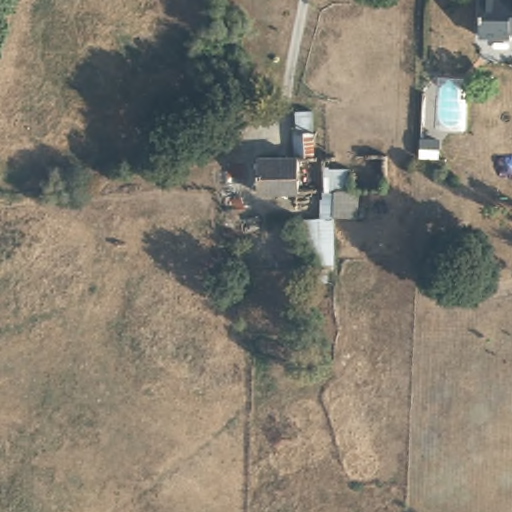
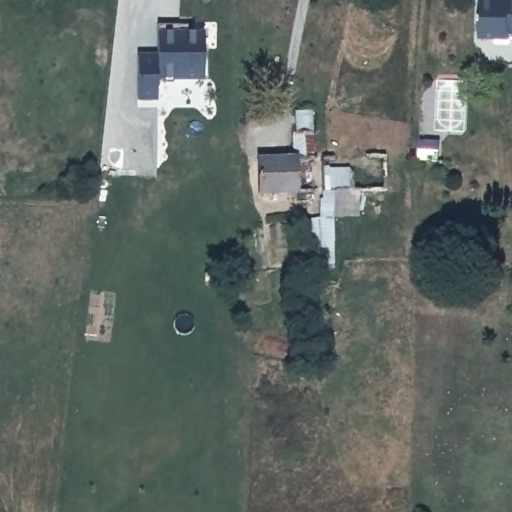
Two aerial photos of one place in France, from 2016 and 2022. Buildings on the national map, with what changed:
unchanged [(482,34),(483,0),(512,0),(512,34),(482,34)]
new [(205,81),(160,81),(160,100),(139,100),(138,53),(158,53),(158,30),(205,30),(205,81)]
unchanged [(258,188),(256,153),(294,153),(293,127),(315,126),(317,153),(299,153),(300,187),(258,188)]
unchanged [(349,166),(350,188),(359,188),(358,216),(336,216),(337,272),(302,275),(301,220),(320,219),(320,197),(323,195),(321,163),(349,166)]

